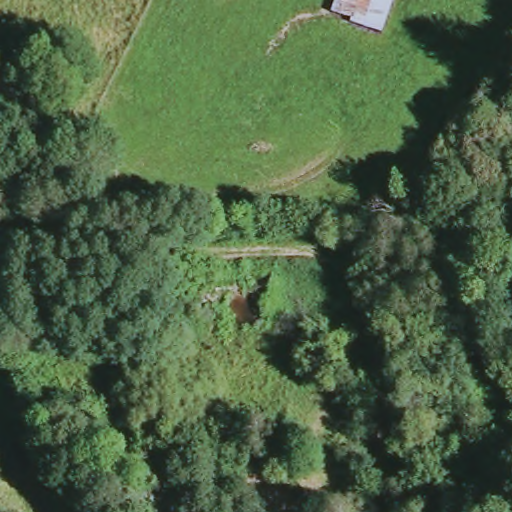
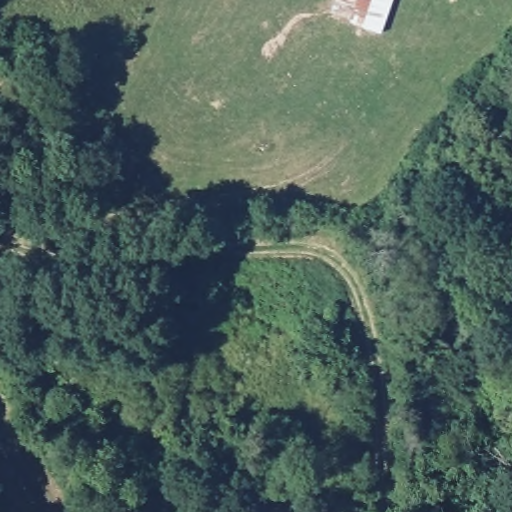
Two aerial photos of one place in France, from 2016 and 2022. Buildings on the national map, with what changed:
unchanged [(344,19),(346,14),(326,7),(328,0),(389,0),(376,34),(344,19)]

